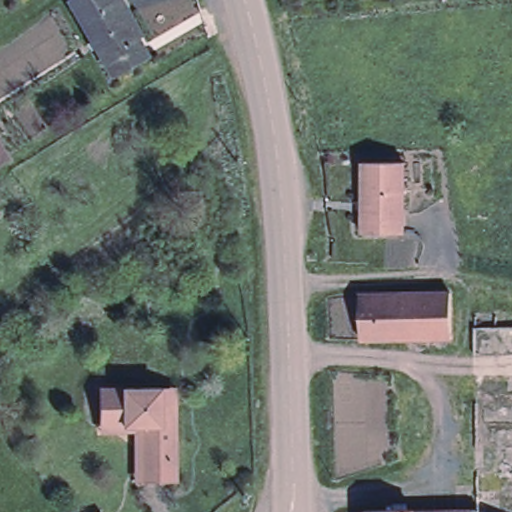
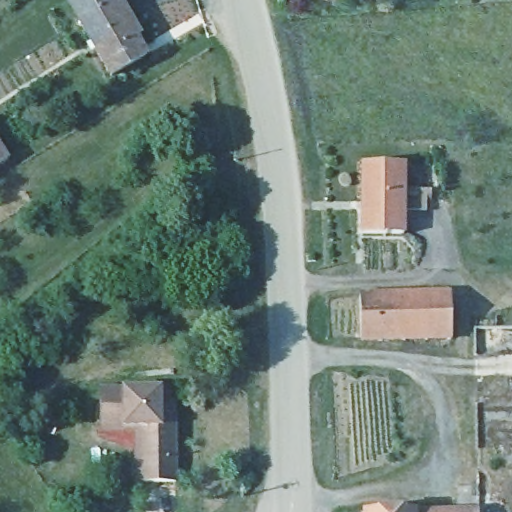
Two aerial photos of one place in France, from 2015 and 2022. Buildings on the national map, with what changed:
unchanged [(129,13),(152,53),(117,73),(84,16),(75,0),(127,0),(133,11),(129,13)]
unchanged [(11,154),(4,158),(0,161),(0,136),(11,154)]
unchanged [(411,163),(408,235),(366,233),(370,161),(411,163)]
unchanged [(453,291),(454,336),(364,338),(363,293),(453,291)]
unchanged [(474,429),(473,399),(473,331),(512,330),(512,512),(474,512),(474,473),(474,429)]
unchanged [(101,423),(101,386),(162,386),(176,386),(176,401),(177,478),(146,478),(137,479),(137,429),(101,428),(101,423)]
unchanged [(104,512),(95,512),(101,508),(104,512)]

